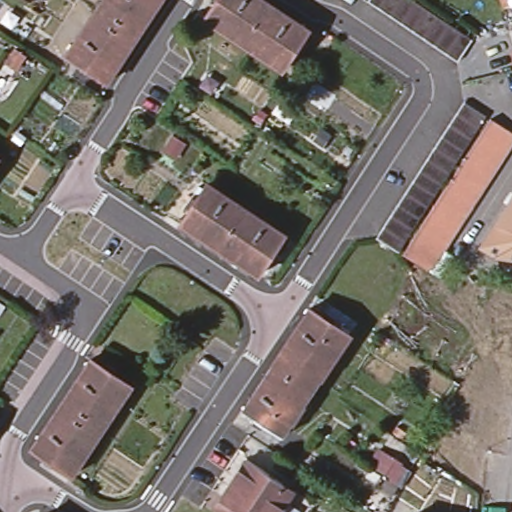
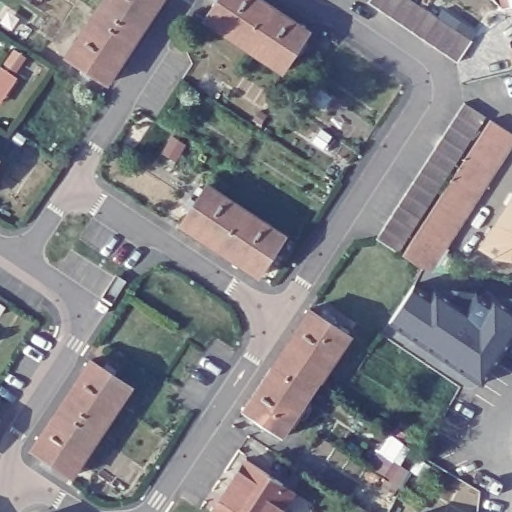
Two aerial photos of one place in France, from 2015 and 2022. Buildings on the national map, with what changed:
unchanged [(107,82),(66,55),(103,0),(160,0),(107,82)]
unchanged [(215,4),(210,0),(260,0),(308,32),(282,71),(204,21),(215,4)]
unchanged [(368,1),(369,0),(412,0),(472,40),(457,62),(368,1)]
unchanged [(464,97),(485,112),(398,247),(376,234),(464,97)]
unchanged [(488,116),(512,131),(512,134),(430,263),(424,265),(420,263),(402,251),(403,251),(488,116)]
unchanged [(180,224),(207,184),(285,235),(258,276),(180,224)]
unchanged [(512,193),(512,253),(497,252),(481,242),(512,193)]
new [(413,287),(429,298),(435,289),(444,296),(450,286),(482,288),(477,298),(490,307),(495,300),(499,292),(512,294),(512,335),(481,378),(390,318),(413,287)]
unchanged [(308,309),(349,336),(320,380),(300,367),(297,372),(292,370),(287,376),(271,365),(308,309)]
unchanged [(40,462),(44,457),(31,448),(90,362),(129,387),(69,475),(52,463),(49,468),(40,462)]
unchanged [(271,365),(287,376),(292,370),(297,372),(300,367),(320,380),(282,437),(241,408),(271,365)]
unchanged [(290,488),(285,497),(276,512),(219,512),(212,507),(243,458),(280,482),(290,488)]
unchanged [(395,470),(390,478),(377,471),(382,463),(395,470)]

